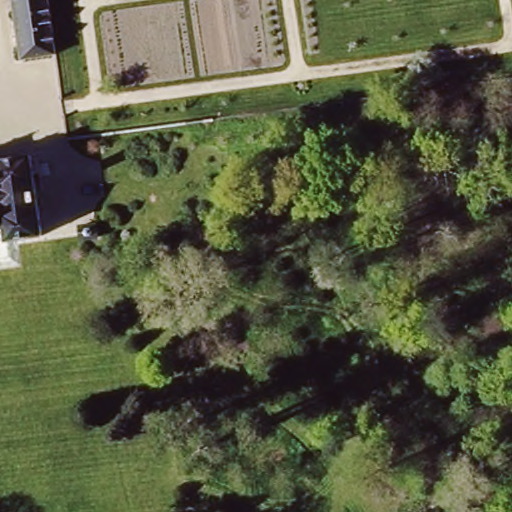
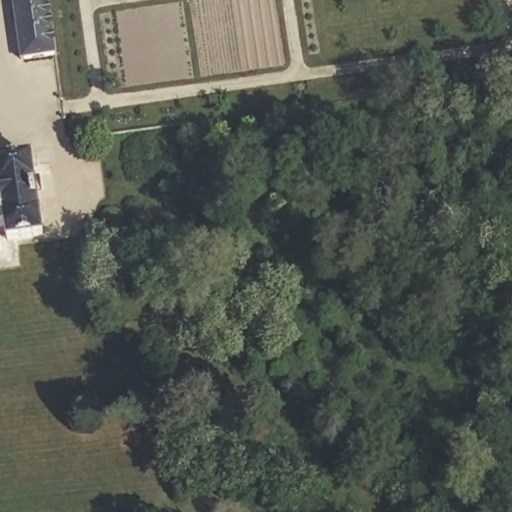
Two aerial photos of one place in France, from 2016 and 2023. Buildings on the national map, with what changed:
unchanged [(19,60),(11,0),(52,0),(59,52),(19,60)]
unchanged [(43,236),(6,241),(4,225),(0,226),(0,157),(33,152),(43,236)]
unchanged [(101,239),(80,242),(79,225),(99,224),(101,239)]

